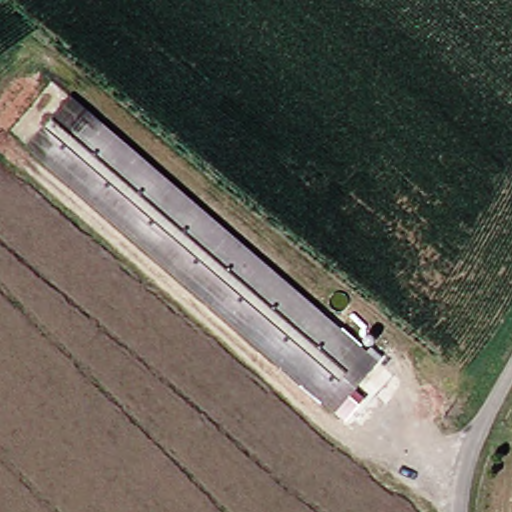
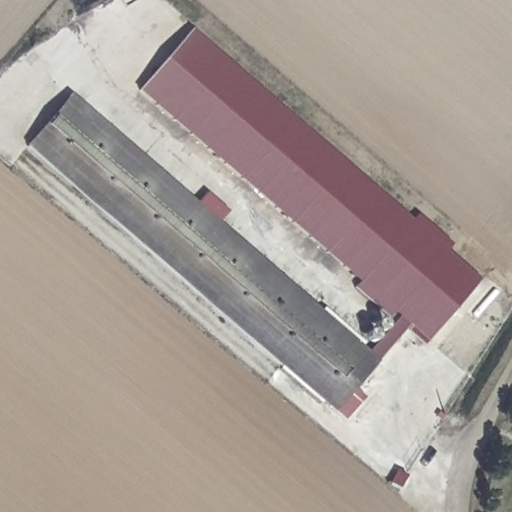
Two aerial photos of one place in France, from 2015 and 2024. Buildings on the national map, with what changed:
new [(393,323),(354,289),(359,283),(137,92),(190,30),(412,221),(418,215),(452,245),(446,252),(481,280),(423,347),(404,331),(379,360),(368,352),(393,323)]
unchanged [(366,361),(324,408),(20,145),(61,95),(366,361)]

